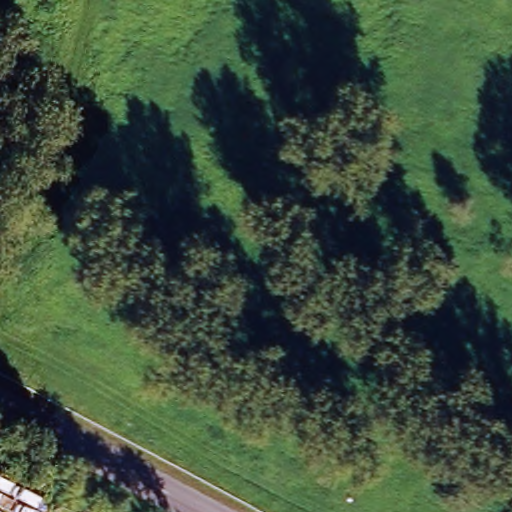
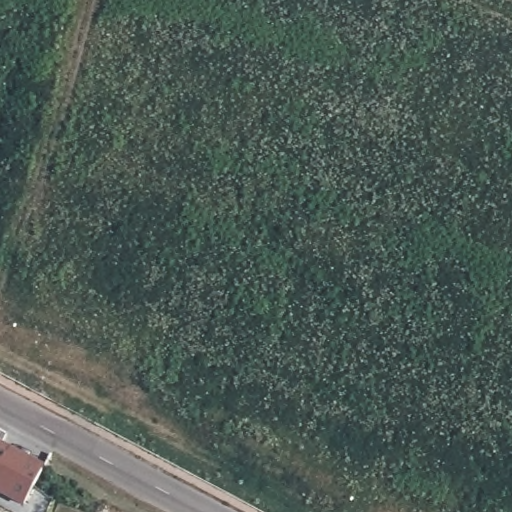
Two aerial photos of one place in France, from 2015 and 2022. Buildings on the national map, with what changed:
new [(43,469),(22,507),(0,496),(0,444),(43,469)]

